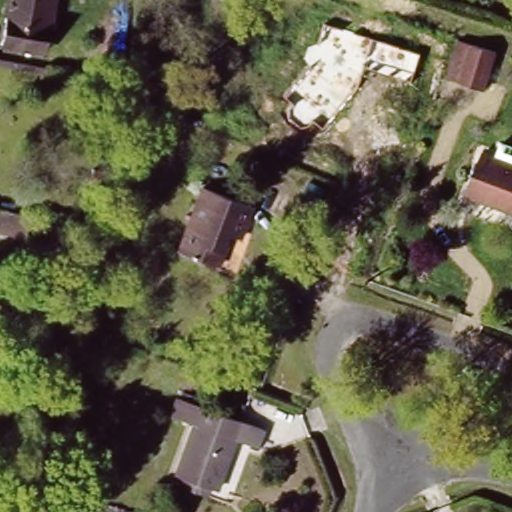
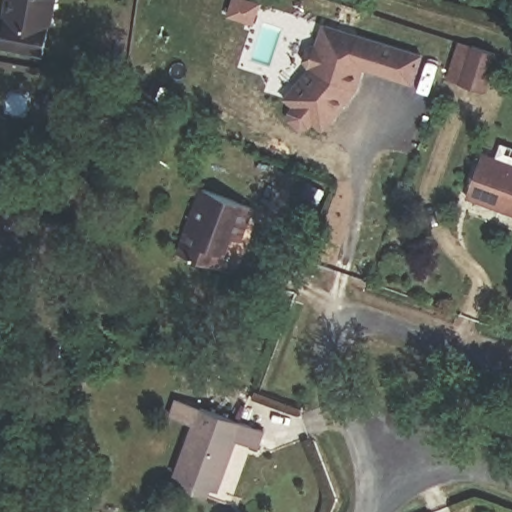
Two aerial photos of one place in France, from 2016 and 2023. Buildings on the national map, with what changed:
unchanged [(45,52),(0,45),(0,36),(6,0),(55,0),(45,52)]
new [(238,0),(251,0),(262,4),(255,22),(233,15),(238,0)]
new [(413,86),(365,69),(358,91),(323,131),(314,124),(310,129),(300,130),(291,123),(287,114),(290,109),(293,106),(283,99),(310,67),(303,60),(307,46),(314,47),(322,22),(423,55),(413,86)]
unchanged [(482,97),(454,87),(439,82),(452,47),(466,51),(495,60),(482,97)]
unchanged [(485,150),(512,158),(512,205),(470,192),(485,150)]
unchanged [(200,186),(250,203),(237,241),(228,238),(219,265),(178,251),(200,186)]
unchanged [(26,241),(0,236),(0,218),(30,223),(26,241)]
unchanged [(172,412),(179,393),(202,402),(201,403),(241,417),(240,421),(265,430),(258,450),(234,442),(219,486),(212,482),(207,496),(189,489),(193,479),(176,473),(195,420),(172,412)]

